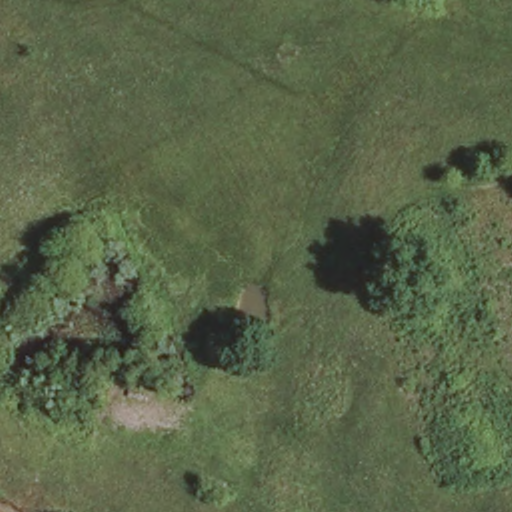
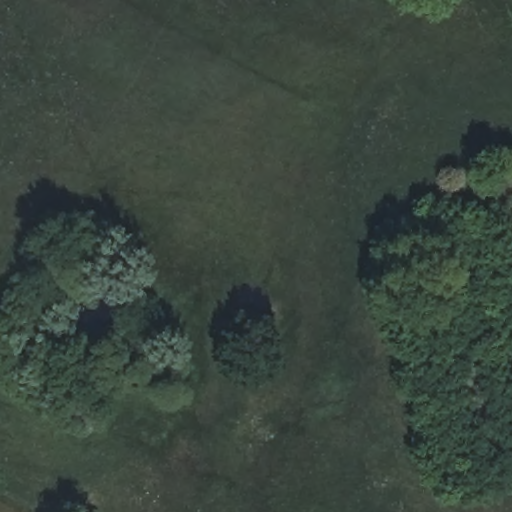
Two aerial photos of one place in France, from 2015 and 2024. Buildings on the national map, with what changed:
[]

